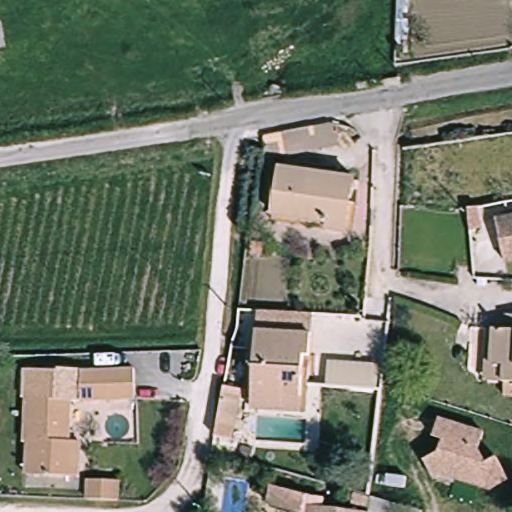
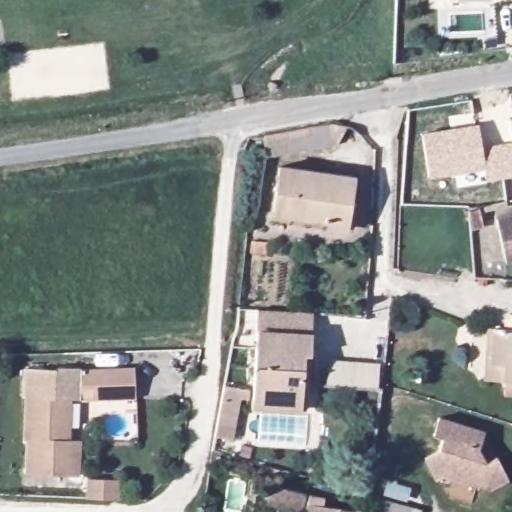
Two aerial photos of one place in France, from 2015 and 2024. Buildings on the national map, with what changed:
new [(512,117),(512,134),(509,117),(512,117)]
new [(487,181),(484,168),(428,177),(422,132),(478,124),(482,147),(512,141),(512,176),(487,181)]
unchanged [(331,126),(338,126),(348,127),(338,147),(268,161),(264,137),(331,126)]
unchanged [(271,217),(272,211),(278,175),(279,166),(310,170),(355,177),(349,217),(347,229),(271,217)]
unchanged [(510,262),(500,219),(512,216),(512,261),(510,262)]
unchanged [(251,403),(252,396),(258,326),(312,330),(308,368),(302,368),(300,392),(299,407),(251,403)]
unchanged [(499,326),(512,327),(512,363),(495,361),(499,326)]
new [(327,388),(329,360),(382,363),(380,392),(327,388)]
unchanged [(75,478),(68,477),(23,475),(25,443),(22,443),(27,379),(80,382),(80,370),(133,369),(134,387),(134,398),(80,400),(70,400),(67,442),(70,442),(77,442),(75,478)]
unchanged [(231,417),(226,441),(214,440),(218,416),(231,417)]
unchanged [(442,448),(446,436),(437,432),(444,417),(486,431),(481,446),(487,459),(497,456),(508,477),(490,486),(485,479),(475,483),(455,477),(452,470),(436,476),(427,456),(442,448)]
unchanged [(85,502),(87,478),(116,480),(115,503),(85,502)]
unchanged [(307,503),(304,511),(271,505),(275,486),(329,500),(328,507),(362,512),(312,512),(314,504),(307,503)]

